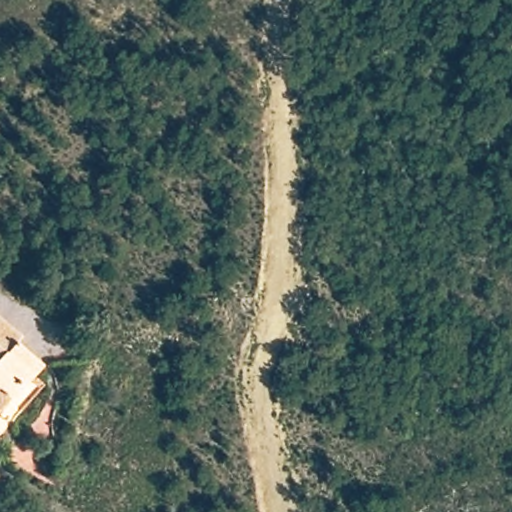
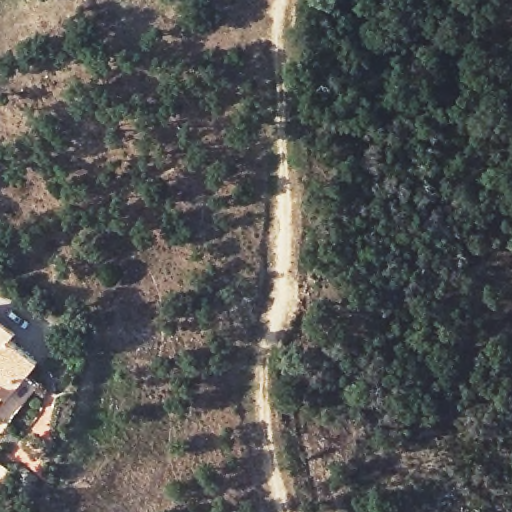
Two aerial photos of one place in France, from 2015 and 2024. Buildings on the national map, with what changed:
unchanged [(9,344),(38,370),(7,406),(3,403),(0,407),(0,328),(14,340),(9,344)]

